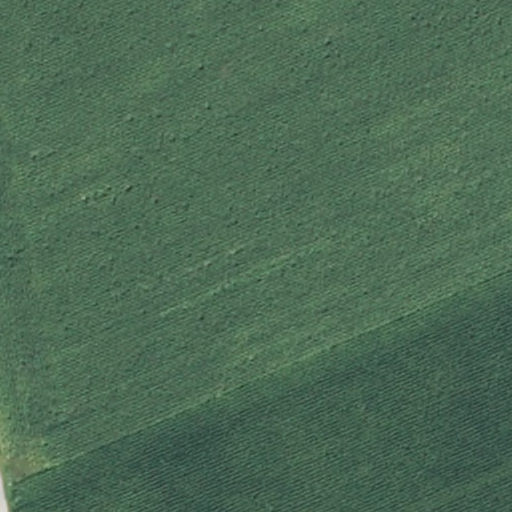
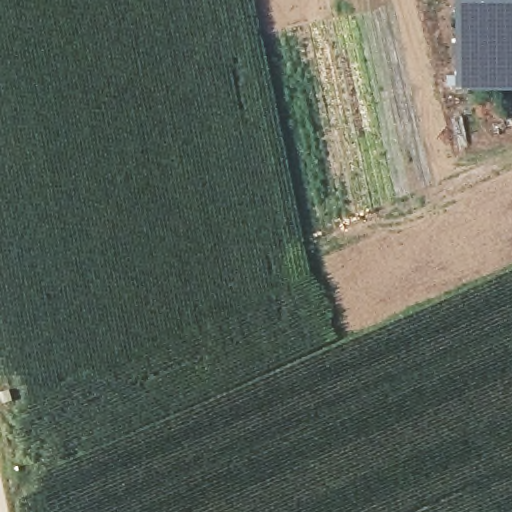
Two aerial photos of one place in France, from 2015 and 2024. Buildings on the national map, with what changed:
new [(494,90),(457,88),(457,0),(512,0),(512,90),(494,90)]

